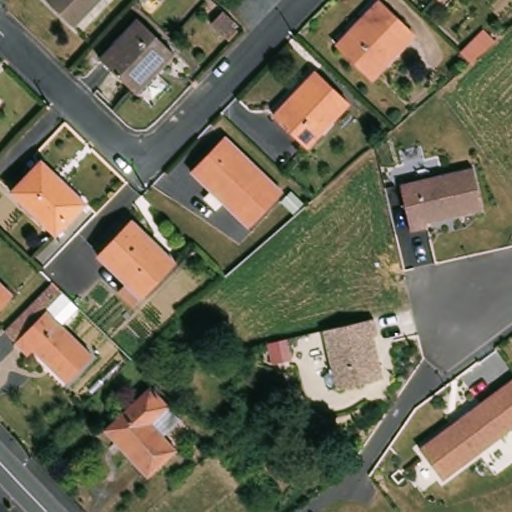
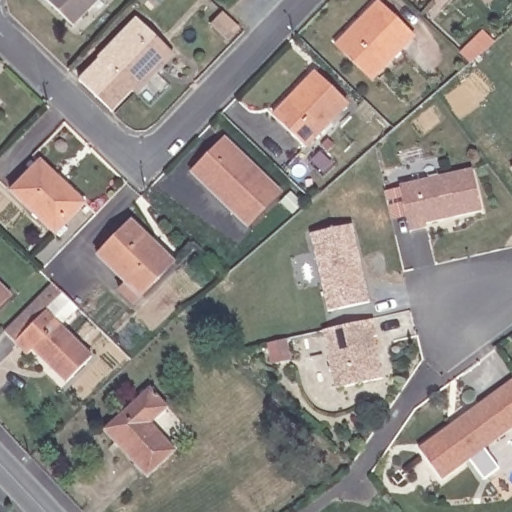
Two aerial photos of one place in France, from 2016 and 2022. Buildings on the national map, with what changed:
unchanged [(73,25),(48,0),(97,0),(73,25)]
unchanged [(416,36),(375,79),(338,45),(381,2),(416,36)]
unchanged [(138,19),(175,55),(136,95),(99,59),(138,19)]
new [(132,91),(113,113),(79,80),(99,59),(132,91)]
unchanged [(349,104),(307,147),(276,117),(318,74),(349,104)]
demolished [(411,97),(421,108),(397,129),(386,118),(411,97)]
unchanged [(3,104),(0,107),(0,101),(3,104)]
unchanged [(283,192),(248,228),(193,174),(228,138),(283,192)]
unchanged [(85,204),(54,235),(11,193),(42,162),(85,204)]
new [(512,167),(512,170),(510,168),(512,167)]
unchanged [(401,185),(474,169),(483,211),(427,224),(428,227),(411,231),(401,185)]
unchanged [(119,293),(127,284),(98,256),(131,221),(176,264),(142,299),(134,306),(119,293)]
new [(371,301),(327,311),(310,234),(353,225),(371,301)]
unchanged [(15,294),(0,309),(0,279),(15,294)]
unchanged [(59,295),(51,303),(44,296),(52,288),(59,295)]
unchanged [(63,299),(79,314),(65,328),(96,359),(72,385),(37,352),(32,357),(19,345),(63,299)]
unchanged [(378,336),(374,336),(384,378),(337,389),(324,330),(328,329),(374,319),(378,336)]
unchanged [(422,443),(512,376),(512,426),(445,474),(422,443)]
unchanged [(149,475),(106,428),(153,385),(171,405),(185,420),(166,437),(177,450),(149,475)]

